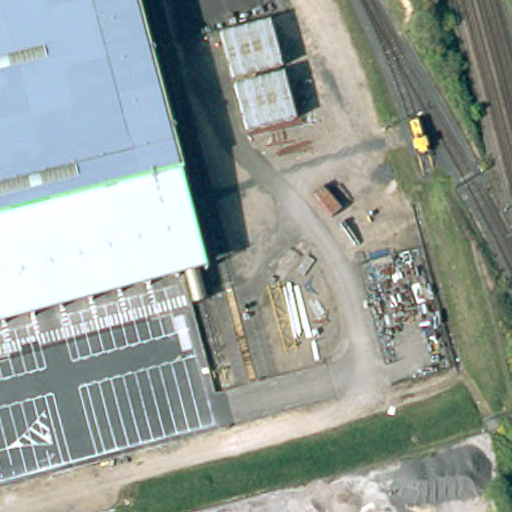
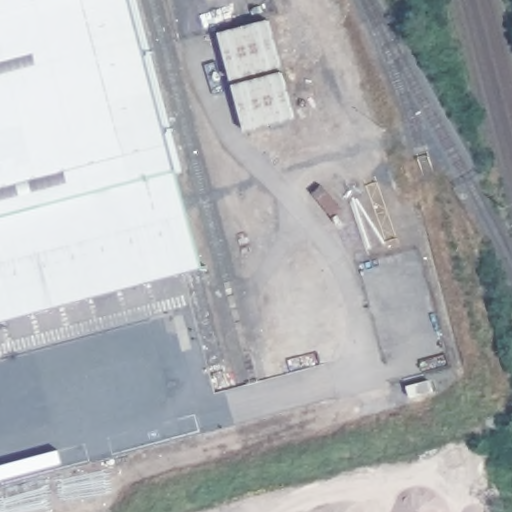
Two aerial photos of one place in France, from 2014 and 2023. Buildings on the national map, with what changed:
unchanged [(0,215),(0,0),(137,0),(183,167),(0,215)]
unchanged [(219,37),(273,20),(299,123),(246,137),(219,37)]
unchanged [(0,215),(183,167),(209,263),(0,319),(0,215)]

